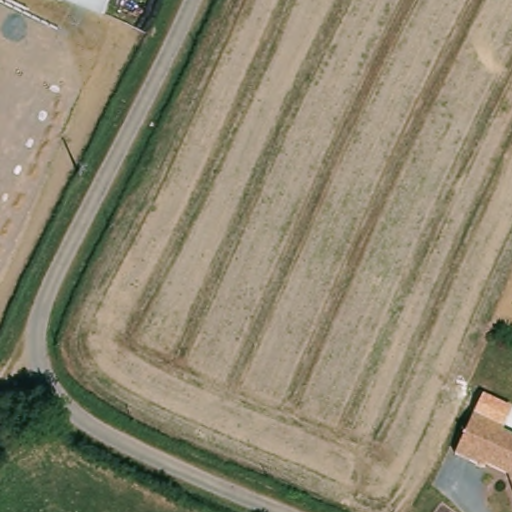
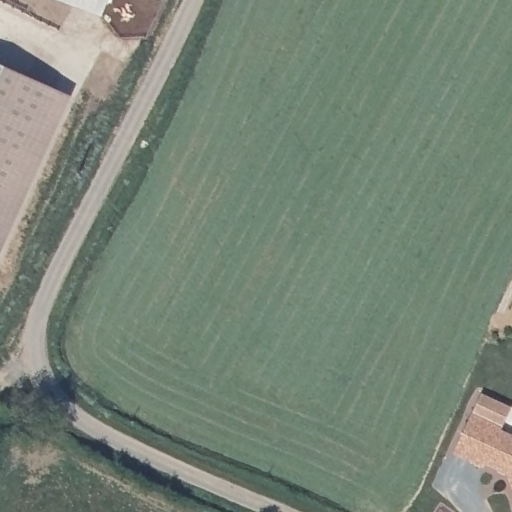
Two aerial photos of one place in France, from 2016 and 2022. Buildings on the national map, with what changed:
unchanged [(67,0),(103,0),(99,12),(67,0)]
new [(0,211),(0,68),(56,95),(0,211)]
unchanged [(485,471),(454,460),(470,418),(500,430),(499,432),(512,437),(512,482),(510,476),(486,467),(485,471)]

